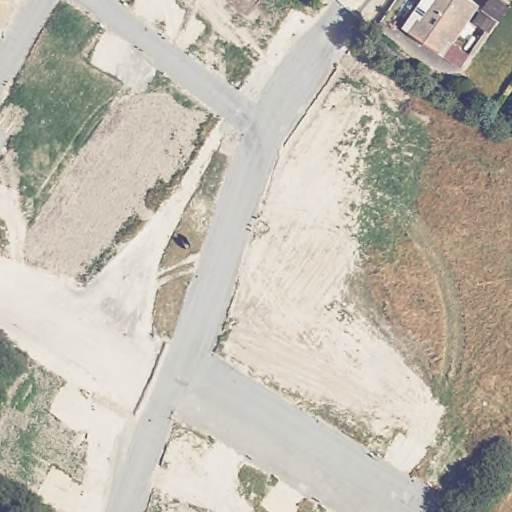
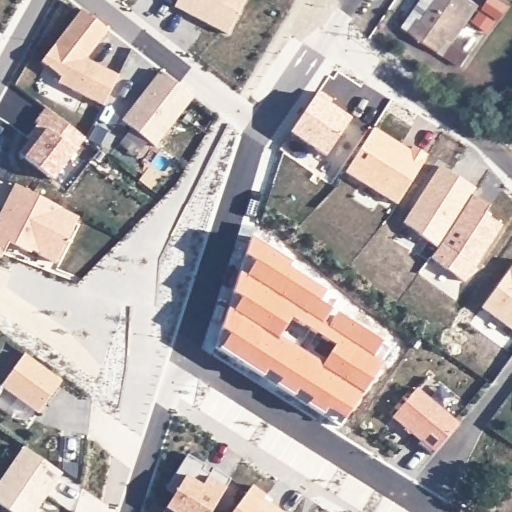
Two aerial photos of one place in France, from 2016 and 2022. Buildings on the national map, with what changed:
new [(244,0),(228,34),(174,6),(177,0),(244,0)]
unchanged [(439,48),(410,28),(404,23),(420,0),(475,0),(478,1),(469,14),(453,37),(449,34),(439,48)]
unchanged [(500,16),(484,4),(486,0),(506,0),(509,3),(500,16)]
unchanged [(490,15),(480,29),(471,23),(481,8),(490,15)]
unchanged [(119,75),(103,106),(59,84),(60,77),(39,63),(80,9),(110,31),(86,59),(119,75)]
unchanged [(467,55),(461,63),(444,51),(450,43),(467,55)]
unchanged [(156,145),(123,120),(160,71),(194,98),(156,145)]
new [(319,91),(332,101),(329,105),(351,120),(326,156),(291,132),(319,91)]
new [(28,136),(38,124),(35,121),(46,108),(85,138),(53,179),(19,153),(30,139),(28,136)]
new [(346,172),(373,127),(409,149),(412,145),(427,154),(397,203),(346,172)]
new [(430,258),(439,246),(403,223),(440,166),(477,187),(472,194),(491,206),(485,214),(503,225),(463,280),(430,258)]
new [(6,204),(16,185),(79,217),(56,262),(29,249),(28,252),(10,243),(1,259),(0,258),(0,224),(10,205),(6,204)]
new [(251,237),(291,262),(288,267),(343,301),(334,313),(391,349),(339,427),(214,347),(251,237)]
new [(512,264),(512,331),(482,308),(512,264)]
unchanged [(61,381),(39,413),(0,386),(25,354),(61,381)]
new [(417,389),(459,424),(432,455),(418,444),(421,441),(393,418),(417,389)]
new [(62,474),(35,512),(11,512),(0,504),(0,482),(24,447),(62,474)]
new [(187,453),(231,479),(211,512),(164,512),(175,494),(166,489),(187,453)]
new [(252,484),(272,500),(269,504),(282,512),(231,512),(252,484)]

